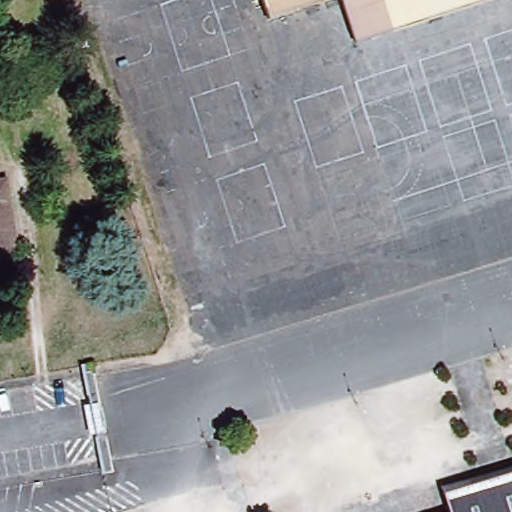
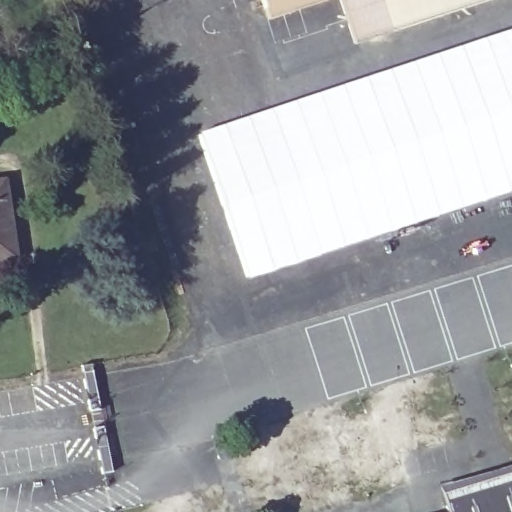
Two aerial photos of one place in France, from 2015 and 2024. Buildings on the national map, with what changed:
unchanged [(55,0),(72,0),(73,4),(58,9),(55,0)]
unchanged [(268,0),(320,0),(272,14),(268,0)]
unchanged [(340,0),(484,0),(352,41),(340,0)]
new [(324,88),(512,27),(512,191),(246,280),(197,132),(324,88)]
unchanged [(81,34),(84,50),(72,52),(67,39),(81,34)]
unchanged [(0,259),(0,182),(10,181),(20,257),(0,259)]
unchanged [(96,407),(90,362),(103,361),(109,405),(96,407)]
unchanged [(111,424),(118,469),(106,471),(98,426),(111,424)]
unchanged [(445,507),(440,487),(512,465),(512,488),(445,507)]
unchanged [(445,507),(512,488),(512,512),(447,512),(445,507)]

